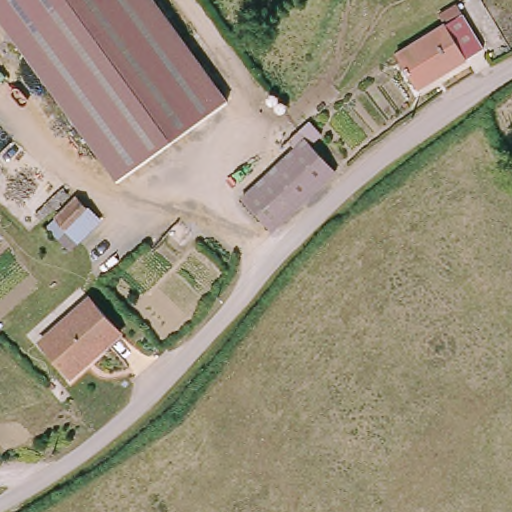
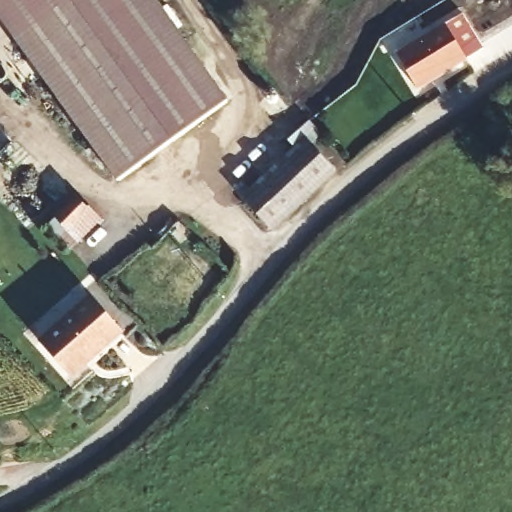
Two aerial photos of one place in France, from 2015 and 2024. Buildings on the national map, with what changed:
unchanged [(226,95),(115,176),(0,19),(0,0),(157,0),(226,95)]
unchanged [(465,9),(486,45),(420,88),(397,50),(465,9)]
unchanged [(330,163),(340,174),(274,233),(246,201),(310,140),(330,163)]
unchanged [(99,213),(62,243),(44,221),(81,191),(99,213)]
unchanged [(118,338),(73,372),(47,340),(94,304),(118,338)]

